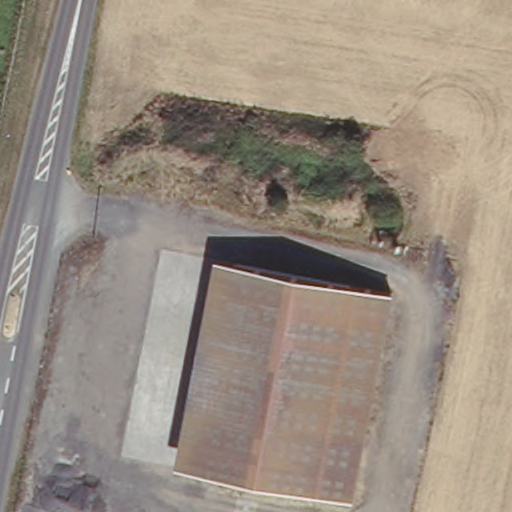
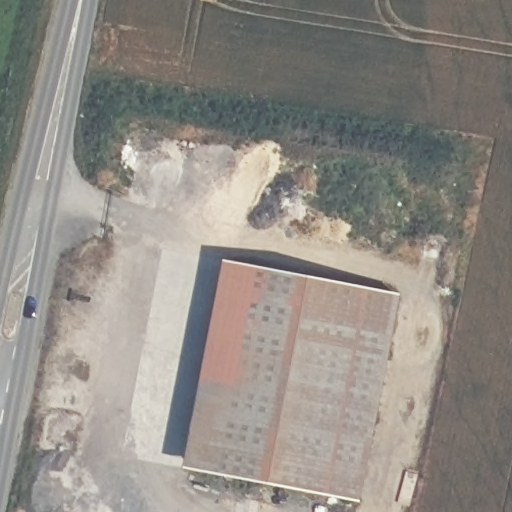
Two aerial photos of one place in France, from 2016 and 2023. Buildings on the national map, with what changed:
unchanged [(396,289),(355,495),(174,462),(216,254),(396,289)]

